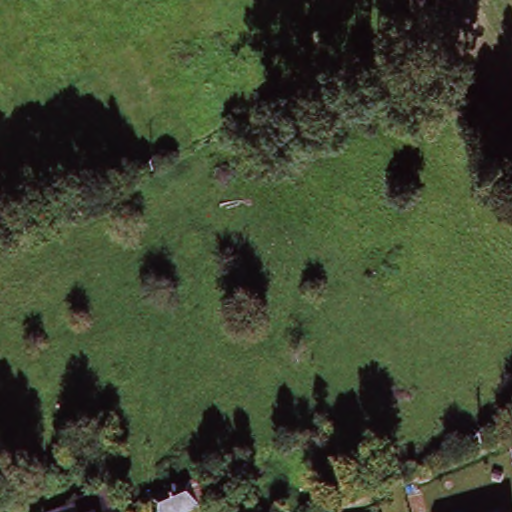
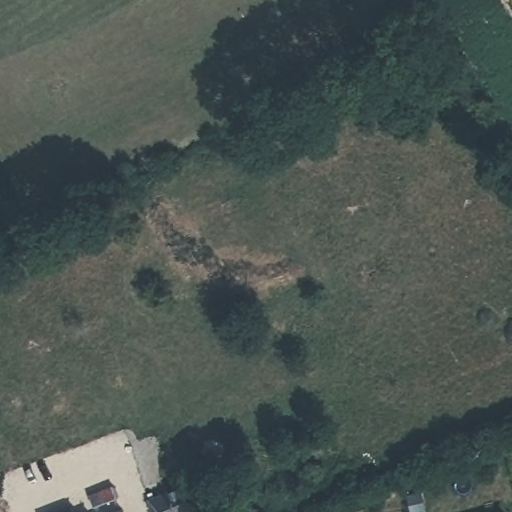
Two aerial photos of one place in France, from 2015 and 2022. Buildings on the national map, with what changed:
unchanged [(190,485),(203,506),(190,512),(145,512),(142,505),(190,485)]
unchanged [(71,511),(70,510),(110,492),(117,511),(117,512),(70,512),(71,511)]
unchanged [(502,512),(499,512),(502,511),(502,512)]

